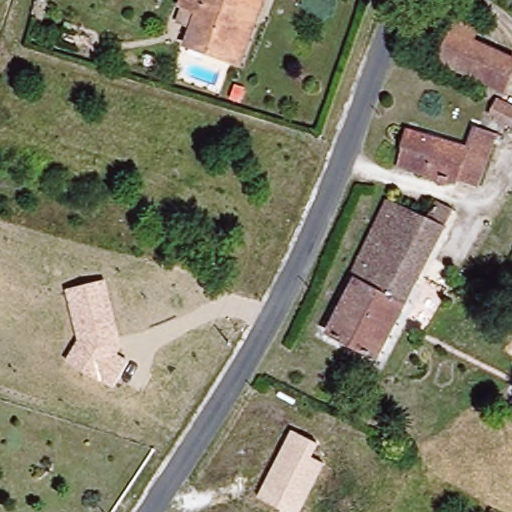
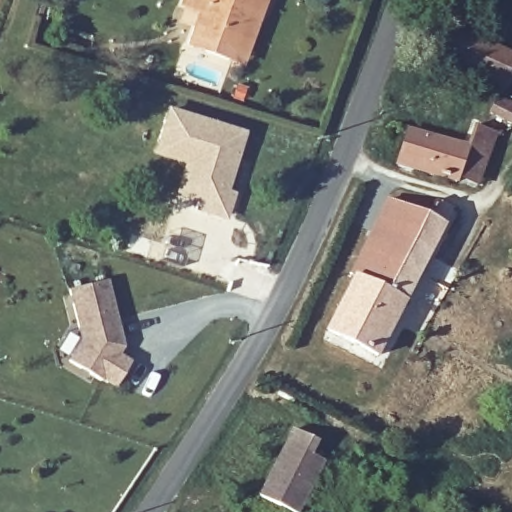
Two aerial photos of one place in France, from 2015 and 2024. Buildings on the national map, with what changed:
unchanged [(227,61),(184,46),(195,11),(178,6),(180,0),(261,0),(256,16),(240,65),(227,61)]
unchanged [(438,61),(440,57),(458,14),(484,24),(479,36),(512,52),(512,70),(504,87),(502,91),(438,61)]
unchanged [(510,122),(485,110),(490,95),(512,105),(512,118),(510,122)]
new [(187,161),(156,151),(170,109),(242,134),(216,214),(195,207),(197,199),(177,192),(182,177),(187,161)]
unchanged [(469,183),(408,170),(415,140),(450,148),(455,124),(480,131),(469,183)]
unchanged [(378,361),(329,338),(386,206),(421,221),(431,203),(448,211),(378,361)]
unchanged [(123,346),(118,353),(130,361),(115,387),(67,360),(79,339),(67,290),(107,280),(123,346)]
unchanged [(311,457),(325,464),(301,512),(286,512),(257,498),(290,430),(318,443),(311,457)]

